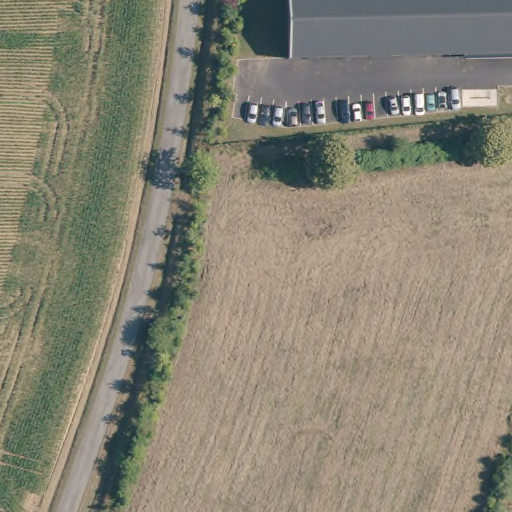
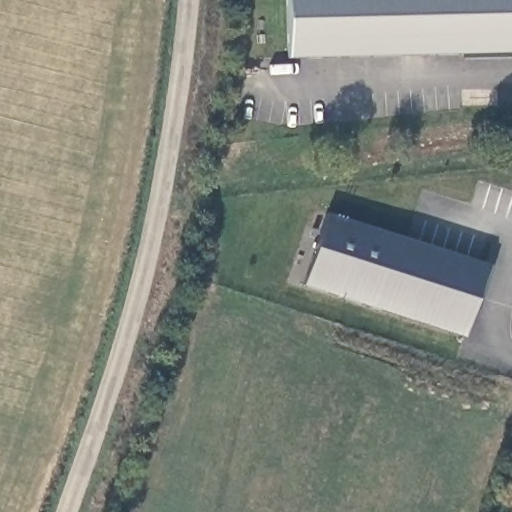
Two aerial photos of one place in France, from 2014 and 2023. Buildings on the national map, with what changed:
unchanged [(288,0),(512,0),(512,56),(290,57),(288,0)]
new [(487,268),(463,337),(303,284),(328,215),(487,268)]

